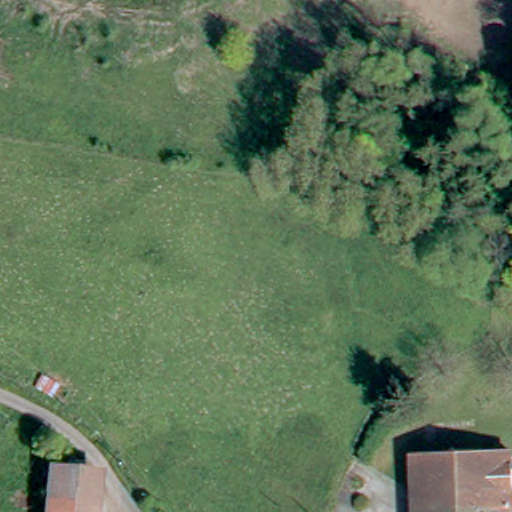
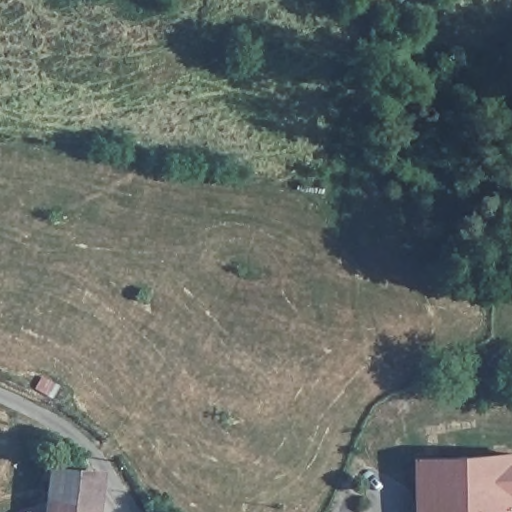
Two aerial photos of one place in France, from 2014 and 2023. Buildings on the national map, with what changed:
unchanged [(512,455),(512,512),(421,512),(420,456),(512,455)]
unchanged [(48,470),(100,476),(97,505),(45,498),(48,470)]
unchanged [(44,512),(45,498),(97,505),(97,512),(44,512)]

